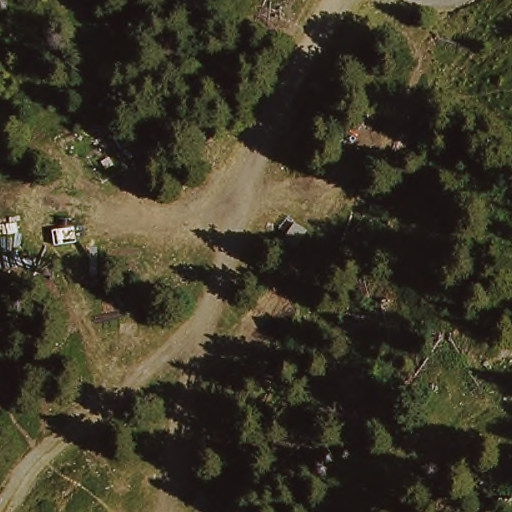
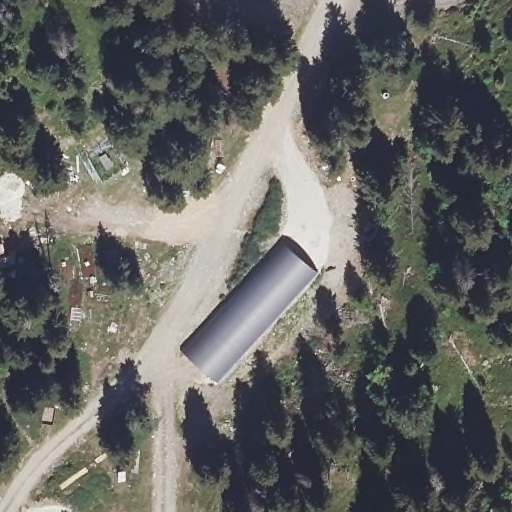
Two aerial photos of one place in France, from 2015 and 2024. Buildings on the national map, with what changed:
new [(279,235),(320,273),(219,386),(178,348),(279,235)]

